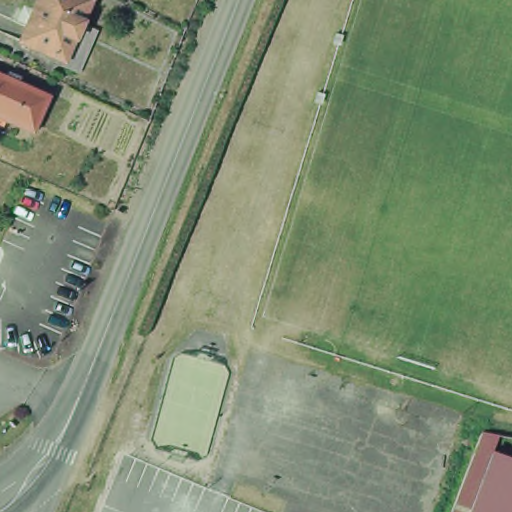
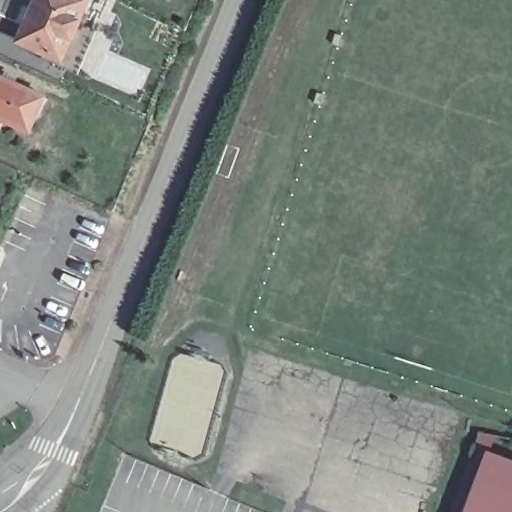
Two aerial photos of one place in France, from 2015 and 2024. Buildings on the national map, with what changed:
unchanged [(89,5),(61,65),(18,45),(39,0),(78,0),(89,5)]
unchanged [(40,102),(24,136),(0,125),(0,83),(40,102)]
unchanged [(509,436),(483,512),(452,512),(481,431),(509,436)]
unchanged [(512,459),(512,512),(483,512),(503,455),(512,459)]

